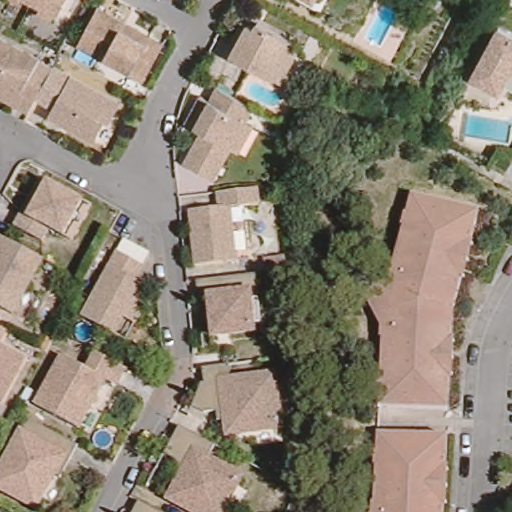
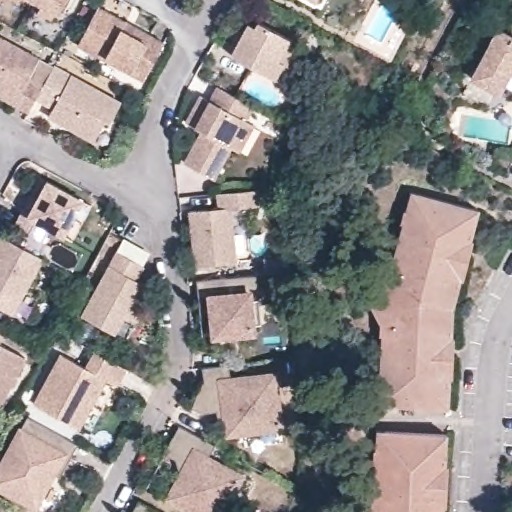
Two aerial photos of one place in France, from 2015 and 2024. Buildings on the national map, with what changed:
unchanged [(20,4),(12,0),(22,0),(20,4)]
unchanged [(39,14),(42,7),(28,0),(68,0),(59,16),(56,14),(52,21),(39,14)]
unchanged [(295,2),(290,0),(296,0),(295,2)]
unchanged [(313,2),(308,0),(314,0),(313,2)]
unchanged [(149,35),(165,43),(145,81),(78,46),(98,8),(126,22),(149,35)]
unchanged [(274,75),(228,50),(236,35),(230,32),(240,15),(245,18),(252,21),(256,17),(294,37),(292,41),(298,44),(288,63),(280,78),(274,75)]
unchanged [(501,92),(474,77),(500,28),(512,35),(512,72),(501,92)]
unchanged [(41,59),(29,81),(43,88),(31,112),(15,104),(0,97),(0,38),(41,59)]
unchanged [(121,103),(110,123),(105,120),(96,142),(49,118),(72,76),(121,103)]
unchanged [(229,148),(211,180),(181,164),(199,132),(192,128),(183,123),(188,115),(198,96),(206,101),(214,87),(251,107),(244,121),(252,126),(237,153),(229,148)]
unchanged [(492,166),(499,153),(512,160),(512,166),(508,174),(492,166)]
unchanged [(63,237),(50,229),(42,242),(14,227),(22,213),(32,195),(38,199),(47,182),(83,201),(63,237)]
unchanged [(455,301),(452,353),(449,407),(389,403),(382,402),(382,385),(383,372),(384,334),(384,321),(385,297),(389,282),(393,269),(396,257),(406,219),(409,207),(413,188),(420,190),(480,206),(455,301)]
unchanged [(196,267),(190,212),(209,210),(214,210),(221,209),(219,194),(259,190),(261,206),(232,209),(237,263),(196,267)]
unchanged [(39,255),(10,311),(0,306),(0,234),(39,255)]
unchanged [(118,330),(85,313),(120,247),(147,262),(139,276),(150,282),(141,299),(144,301),(127,335),(118,330)]
unchanged [(288,273),(268,275),(266,260),(287,258),(288,273)]
unchanged [(256,327),(256,335),(216,339),(214,319),(202,320),(200,300),(198,282),(259,276),(261,294),(264,326),(256,327)]
unchanged [(2,328),(0,331),(0,327),(2,328)]
unchanged [(21,355),(0,395),(0,344),(21,355)]
unchanged [(89,370),(98,354),(129,371),(119,388),(108,382),(82,431),(37,407),(64,357),(89,370)]
unchanged [(216,413),(203,415),(191,410),(203,383),(206,383),(204,368),(231,365),(232,380),(276,376),(282,431),(227,437),(225,422),(217,423),(216,413)]
unchanged [(51,477),(33,510),(0,492),(0,466),(25,420),(76,448),(68,462),(58,480),(51,477)]
unchanged [(245,473),(224,512),(201,512),(171,496),(183,474),(178,457),(166,451),(181,423),(217,442),(210,455),(245,473)]
unchanged [(375,512),(375,506),(377,466),(378,453),(379,432),(386,433),(449,436),(445,512),(375,512)]
unchanged [(156,512),(135,512),(140,503),(156,512)]

